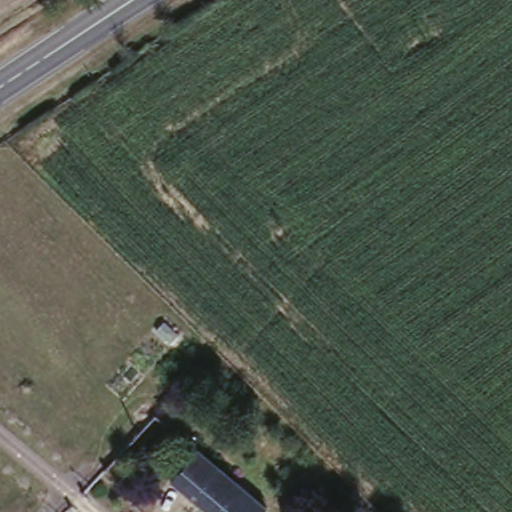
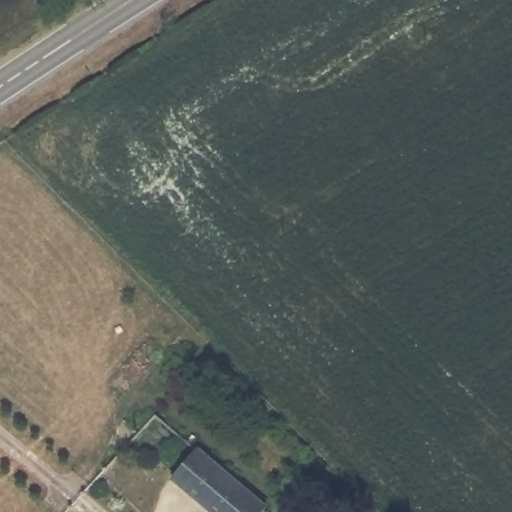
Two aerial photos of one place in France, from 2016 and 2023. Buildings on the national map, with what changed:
unchanged [(181,476),(140,437),(153,424),(252,512),(201,512),(173,484),(181,476)]

